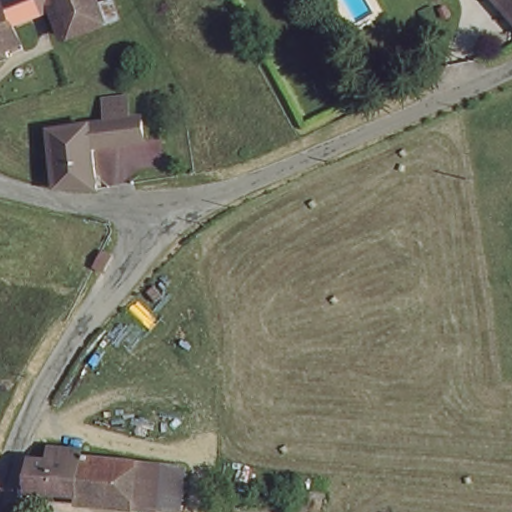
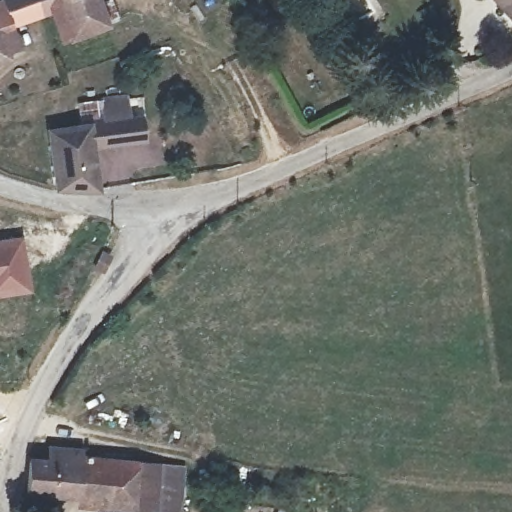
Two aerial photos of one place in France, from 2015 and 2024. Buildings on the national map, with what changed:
unchanged [(0,58),(0,1),(1,0),(36,0),(41,12),(12,22),(22,51),(6,56),(0,58)]
unchanged [(68,38),(54,7),(41,12),(36,0),(97,0),(108,24),(68,38)]
unchanged [(512,0),(512,21),(493,0),(512,0)]
unchanged [(49,135),(140,122),(143,144),(91,150),(95,191),(55,190),(49,135)]
new [(0,297),(0,239),(21,237),(30,292),(0,297)]
unchanged [(31,450),(182,464),(185,512),(167,512),(72,509),(72,496),(29,493),(31,450)]

